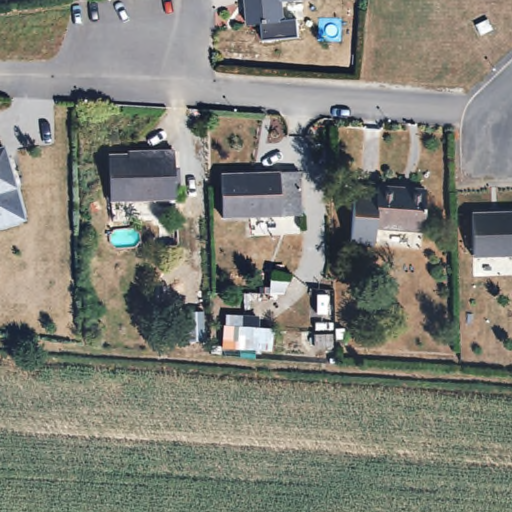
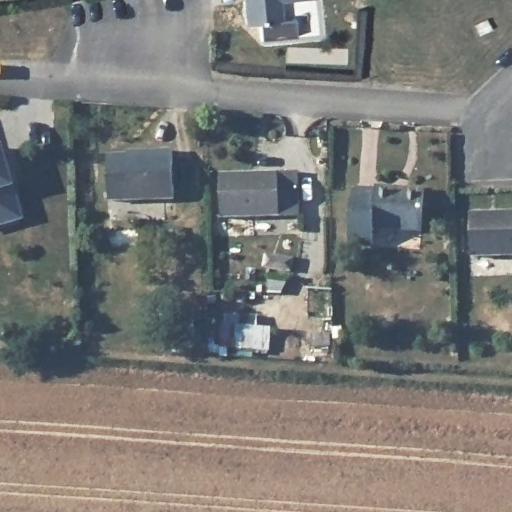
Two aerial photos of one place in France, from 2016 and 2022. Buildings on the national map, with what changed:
unchanged [(283,1),(285,21),(248,24),(245,0),(288,0),(283,1)]
unchanged [(488,19),(493,30),(482,35),(477,24),(488,19)]
unchanged [(6,149),(26,212),(21,222),(0,229),(0,151),(6,149)]
unchanged [(158,154),(158,151),(173,151),(174,198),(110,200),(110,154),(158,154)]
unchanged [(300,175),(300,215),(224,217),(223,175),(300,175)]
unchanged [(425,185),(423,226),(378,225),(377,239),(352,237),(354,184),(378,184),(378,183),(425,185)]
unchanged [(512,256),(475,257),(473,216),(512,214),(512,256)]
unchanged [(205,311),(205,338),(189,338),(188,311),(205,311)]

